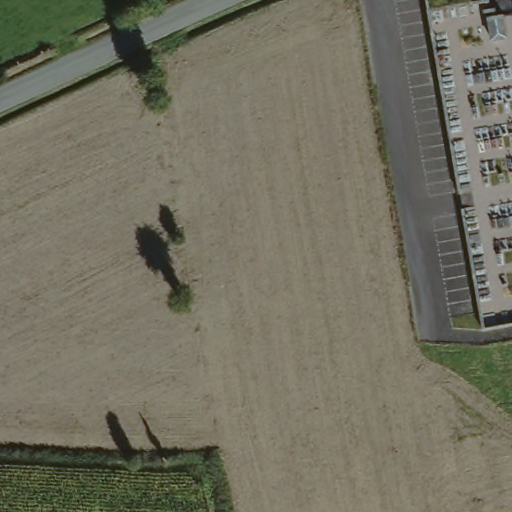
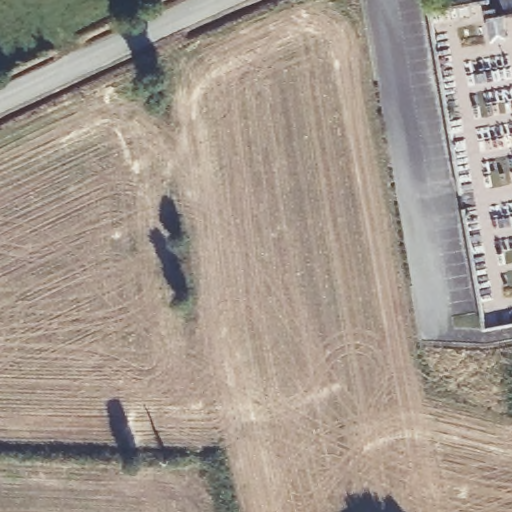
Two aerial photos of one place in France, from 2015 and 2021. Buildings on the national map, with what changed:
unchanged [(505,50),(489,53),(484,26),(501,23),(505,50)]

